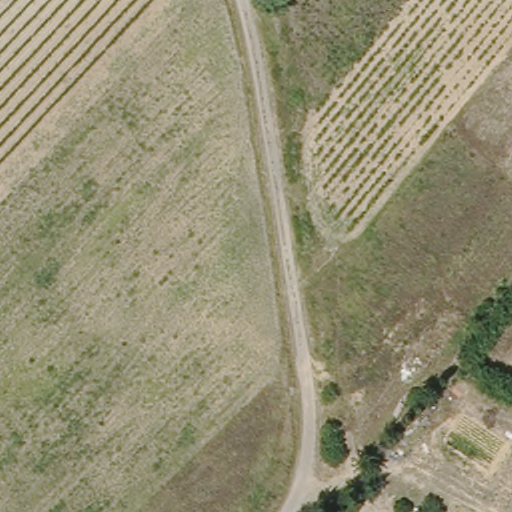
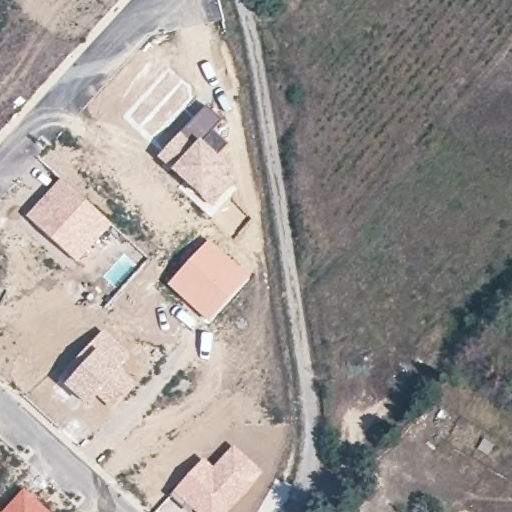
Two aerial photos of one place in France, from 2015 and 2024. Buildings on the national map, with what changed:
new [(190,85),(193,99),(186,108),(195,117),(177,135),(161,154),(125,119),(169,71),(190,85)]
new [(177,135),(206,106),(221,120),(202,141),(222,159),(238,180),(213,210),(157,158),(177,135)]
new [(61,176),(111,224),(76,262),(25,215),(61,176)]
new [(210,240),(250,275),(208,321),(167,284),(210,240)]
new [(103,330),(130,356),(120,367),(135,385),(110,411),(96,397),(86,406),(59,377),(103,330)]
new [(213,466),(233,445),(262,472),(226,512),(195,512),(171,492),(204,458),(213,466)]
new [(51,512),(1,512),(25,487),(51,512)]
unchanged [(318,512),(319,510),(324,512),(318,512)]

